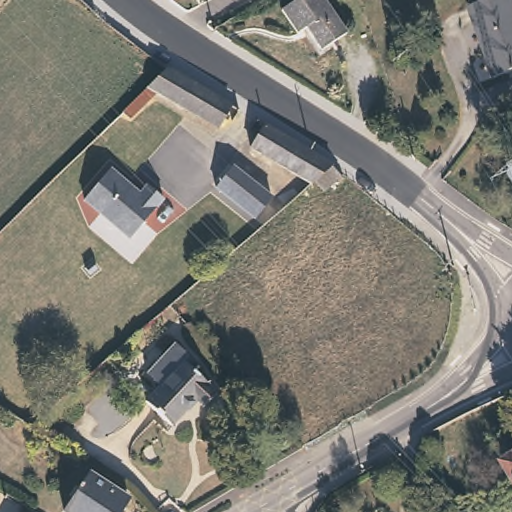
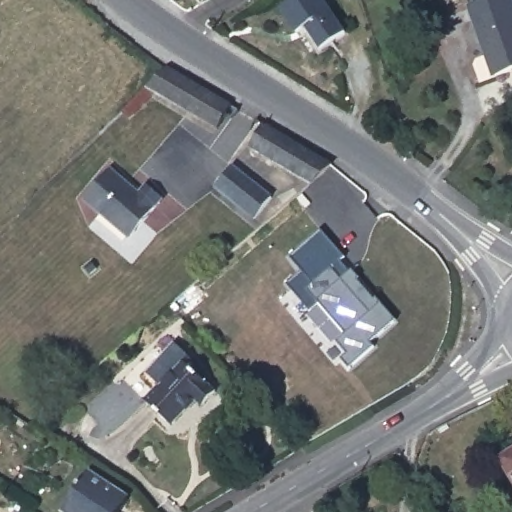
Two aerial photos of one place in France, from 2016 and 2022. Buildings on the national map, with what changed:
unchanged [(297,0),(328,0),(349,29),(324,49),(308,27),(302,32),(284,10),(297,0)]
unchanged [(487,0),(512,0),(512,71),(497,76),(469,7),(487,0)]
unchanged [(231,107),(217,131),(156,94),(146,104),(122,126),(115,119),(150,86),(164,72),(166,69),(188,81),(231,107)]
unchanged [(319,177),(312,167),(308,170),(250,135),(264,111),(332,150),(329,153),(338,163),(319,177)]
unchanged [(274,194),(259,214),(220,183),(236,163),(274,194)]
unchanged [(153,187),(164,196),(131,235),(121,227),(84,197),(110,166),(140,191),(147,182),(153,187)]
new [(341,358),(348,352),(338,340),(348,333),(319,301),(310,309),(288,284),(302,270),(290,256),(321,230),(344,256),(340,259),(351,271),(353,269),(359,278),(358,279),(375,299),(378,298),(396,321),(370,342),(374,347),(349,368),(341,358)]
unchanged [(94,271),(88,278),(81,271),(88,265),(94,271)]
unchanged [(193,355),(189,361),(218,382),(205,400),(195,393),(175,421),(148,401),(160,384),(148,375),(146,374),(170,339),(181,347),(193,355)]
unchanged [(512,457),(512,473),(504,463),(512,457)]
unchanged [(114,512),(78,512),(64,503),(89,465),(128,490),(114,512)]

